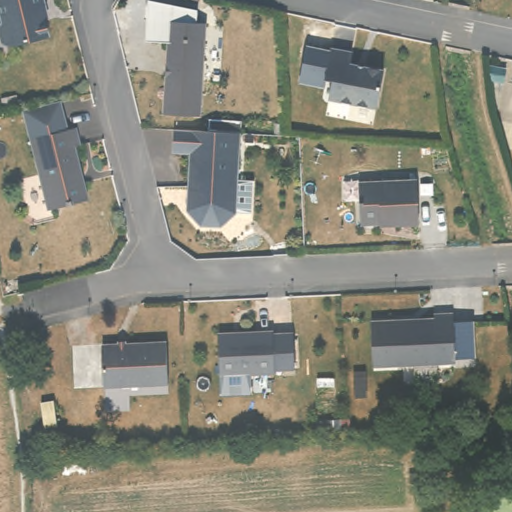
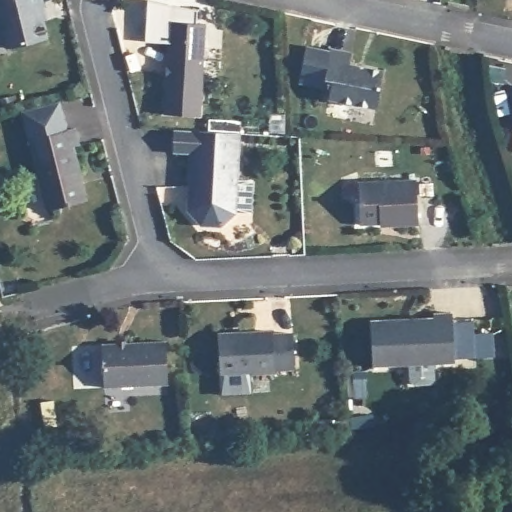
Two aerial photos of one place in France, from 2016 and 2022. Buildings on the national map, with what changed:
unchanged [(39,10),(48,39),(8,51),(2,47),(0,39),(0,28),(2,24),(0,18),(0,0),(41,0),(44,9),(39,10)]
unchanged [(142,42),(145,1),(194,13),(193,25),(166,23),(165,44),(142,42)]
unchanged [(193,25),(202,26),(196,118),(159,115),(165,44),(166,23),(193,25)]
unchanged [(385,71),(378,108),(330,98),(334,81),(326,80),(332,49),(353,53),(351,64),(385,71)]
unchanged [(76,144),(70,146),(84,200),(45,211),(26,140),(21,122),(18,110),(55,100),(57,113),(62,131),(71,128),(76,144)]
unchanged [(240,135),(235,214),(220,228),(200,227),(187,212),(190,154),(173,153),(174,131),(240,135)]
unchanged [(412,180),(415,225),(385,226),(385,223),(358,225),(356,182),(412,180)]
unchanged [(433,322),(433,312),(451,311),(454,361),(372,366),(370,320),(412,318),(412,323),(433,322)]
unchanged [(272,330),(272,333),(292,332),(294,367),(273,367),(273,371),(220,373),(218,332),(272,330)]
unchanged [(165,340),(169,384),(105,389),(101,346),(165,340)]

